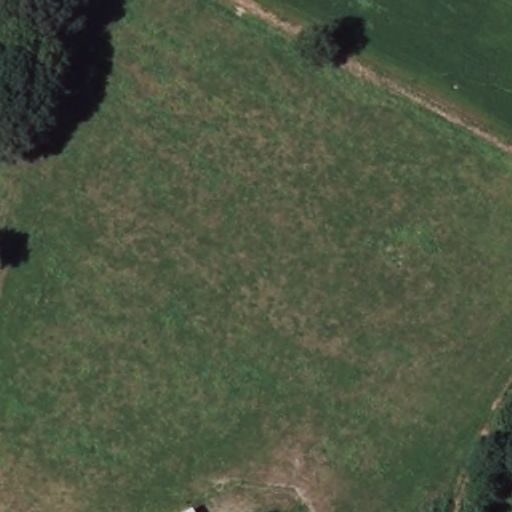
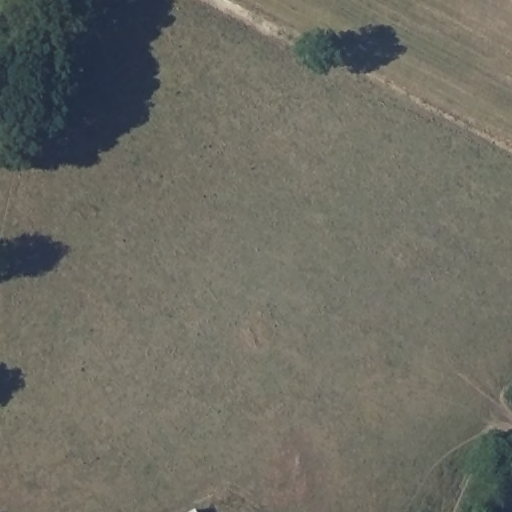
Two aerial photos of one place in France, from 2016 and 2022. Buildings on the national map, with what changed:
unchanged [(190,512),(199,506),(202,512),(190,512)]

